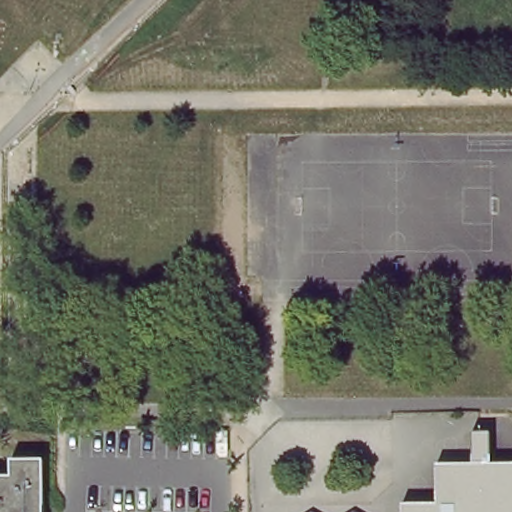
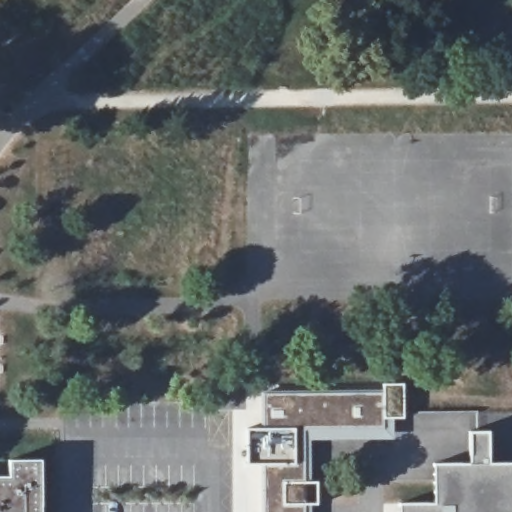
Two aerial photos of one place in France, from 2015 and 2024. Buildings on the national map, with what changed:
new [(382,382),(404,382),(405,419),(394,419),(395,438),(310,440),(310,471),(308,471),(308,480),(318,480),(318,506),(311,506),(311,512),(261,512),(259,465),(247,466),(246,426),(260,425),(260,389),(382,389),(382,382)]
unchanged [(434,501),(435,462),(470,462),(471,429),(487,429),(487,461),(512,461),(512,512),(401,512),(401,501),(434,501)]
unchanged [(7,460),(39,459),(39,512),(0,512),(0,475),(7,475),(7,460)]
demolished [(358,512),(344,512),(350,508),(358,512)]
demolished [(315,512),(305,512),(311,509),(315,512)]

